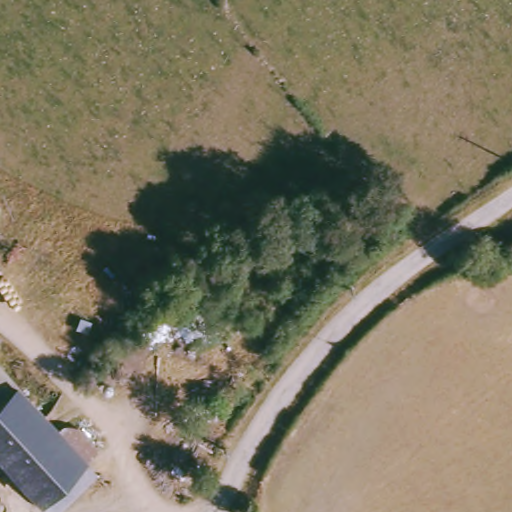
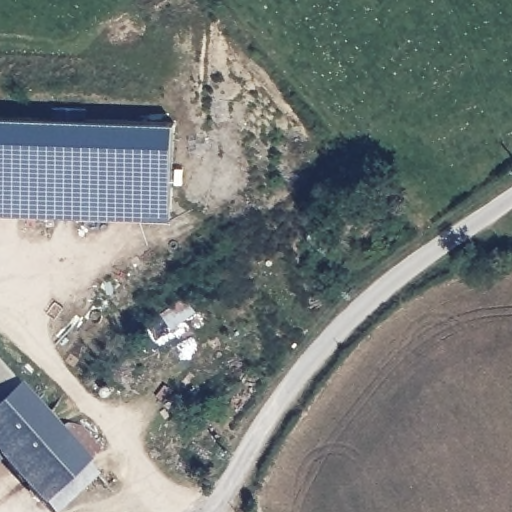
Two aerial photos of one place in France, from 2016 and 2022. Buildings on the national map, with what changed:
new [(168,220),(0,212),(0,113),(173,122),(168,220)]
unchanged [(0,405),(0,364),(20,387),(0,405)]
unchanged [(84,424),(109,446),(93,460),(107,477),(69,512),(59,512),(9,461),(0,470),(0,405),(20,387),(47,415),(61,429),(68,422),(84,424)]

